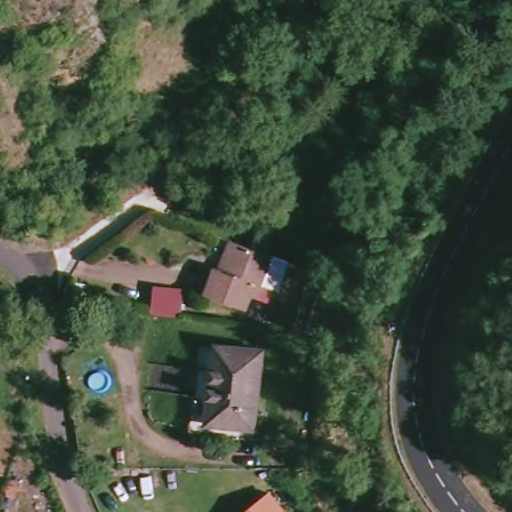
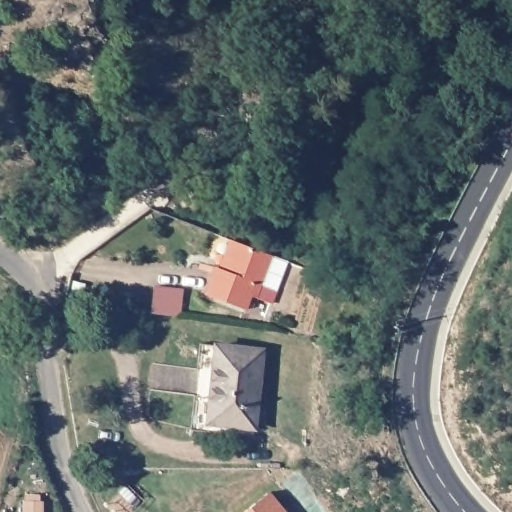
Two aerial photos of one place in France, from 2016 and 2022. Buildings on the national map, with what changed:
unchanged [(247,311),(205,296),(226,242),(266,254),(247,311)]
unchanged [(171,300),(169,320),(141,317),(143,297),(171,300)]
unchanged [(252,347),(254,422),(205,425),(204,350),(252,347)]
unchanged [(263,493),(277,512),(239,512),(263,493)]

